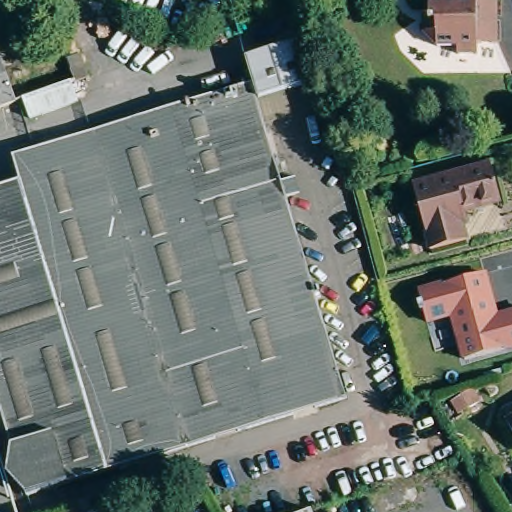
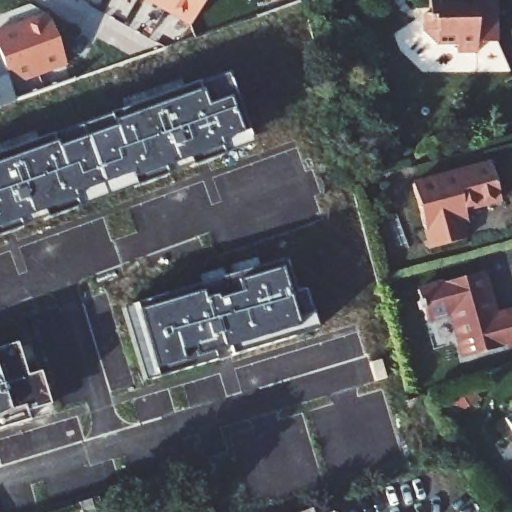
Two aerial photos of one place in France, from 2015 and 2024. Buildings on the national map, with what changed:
new [(190,26),(143,0),(205,0),(190,26)]
unchanged [(497,41),(477,42),(477,52),(457,52),(457,46),(436,47),(422,34),(422,15),(427,15),(427,0),(497,0),(497,41)]
new [(0,30),(47,13),(66,66),(15,85),(5,55),(0,43),(0,30)]
demolished [(307,83),(259,98),(245,56),(295,41),(307,83)]
unchanged [(23,107),(0,115),(0,56),(5,55),(23,107)]
new [(52,139),(109,118),(107,115),(197,83),(198,86),(225,76),(252,144),(0,233),(0,154),(50,136),(52,139)]
demolished [(0,413),(0,184),(22,177),(15,154),(250,83),(345,395),(25,488),(0,413)]
unchanged [(501,196),(467,205),(470,217),(463,220),(467,236),(431,246),(415,181),(492,160),(501,196)]
new [(120,308),(283,261),(293,293),(304,291),(317,329),(230,355),(144,381),(120,308)]
unchanged [(500,345),(459,356),(439,280),(481,269),(492,313),(512,308),(512,342),(500,345)]
new [(24,378),(37,374),(47,406),(50,415),(27,421),(0,429),(0,349),(14,345),(24,378)]
unchanged [(467,385),(476,401),(467,406),(459,391),(467,385)]
unchanged [(510,417),(512,415),(512,421),(510,417)]
unchanged [(312,512),(309,512),(312,511),(312,512)]

